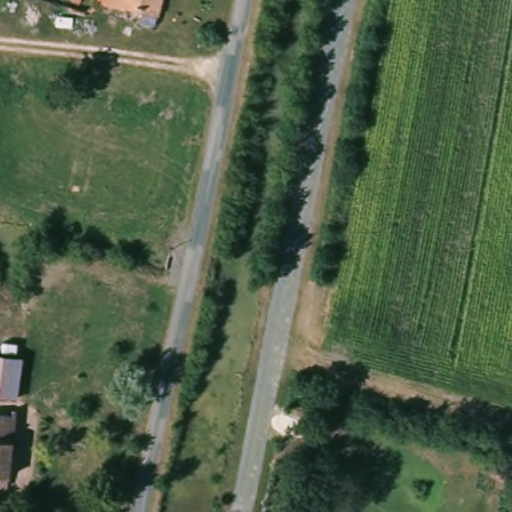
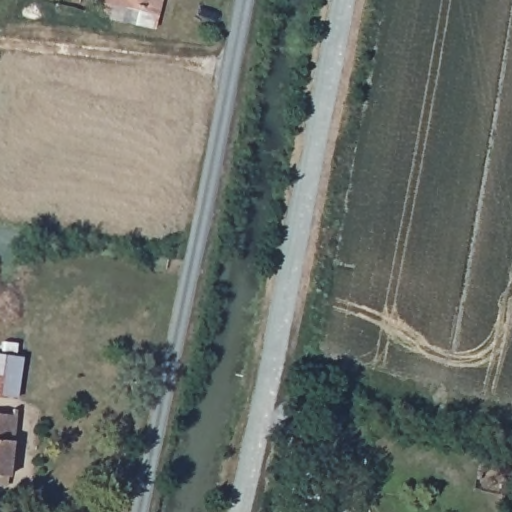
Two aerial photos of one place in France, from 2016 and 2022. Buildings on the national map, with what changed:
unchanged [(169,10),(163,34),(97,19),(101,0),(165,0),(163,9),(169,10)]
unchanged [(25,354),(18,394),(0,392),(0,350),(25,354)]
unchanged [(36,480),(0,474),(0,450),(6,415),(45,421),(36,480)]

